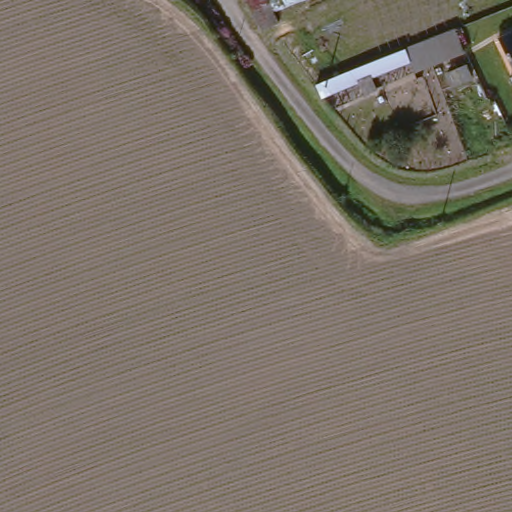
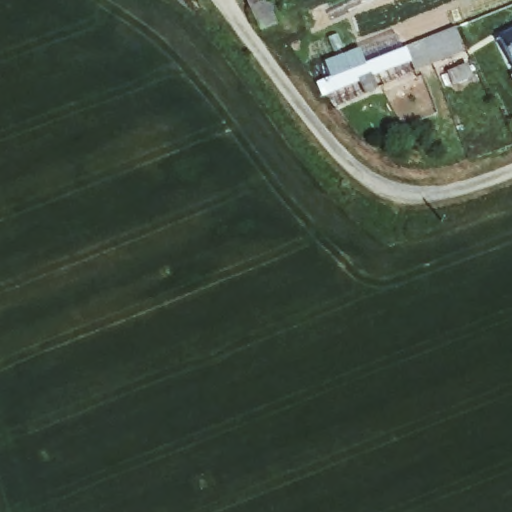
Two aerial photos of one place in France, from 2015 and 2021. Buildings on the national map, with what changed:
unchanged [(274,30),(256,38),(241,0),(266,0),(264,1),(274,30)]
unchanged [(498,36),(512,31),(512,58),(498,36)]
unchanged [(408,79),(401,51),(452,32),(459,56),(408,79)]

